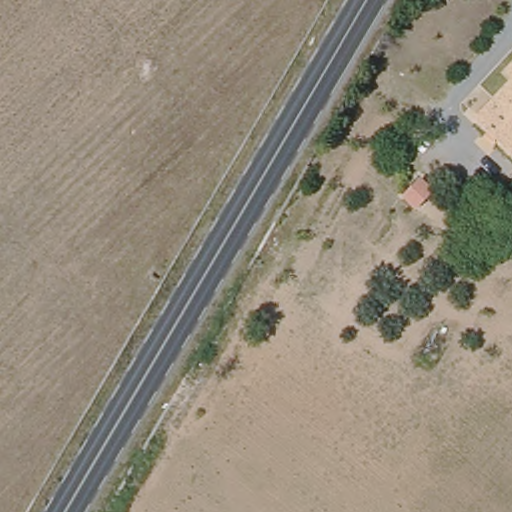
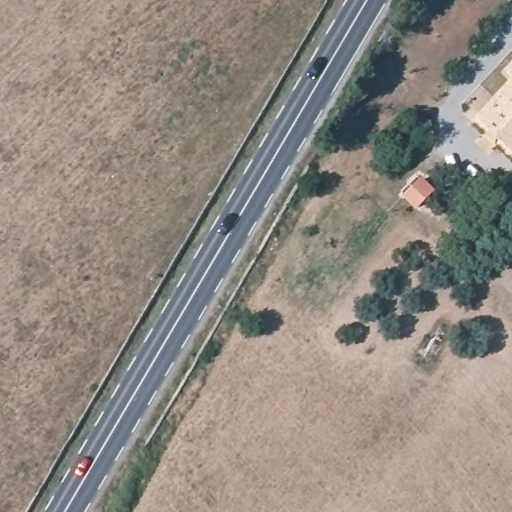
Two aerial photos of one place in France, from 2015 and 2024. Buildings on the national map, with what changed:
unchanged [(505,71),(512,64),(512,78),(505,71)]
unchanged [(476,118),(512,80),(512,153),(476,118)]
unchanged [(405,195),(420,179),(432,192),(418,207),(405,195)]

